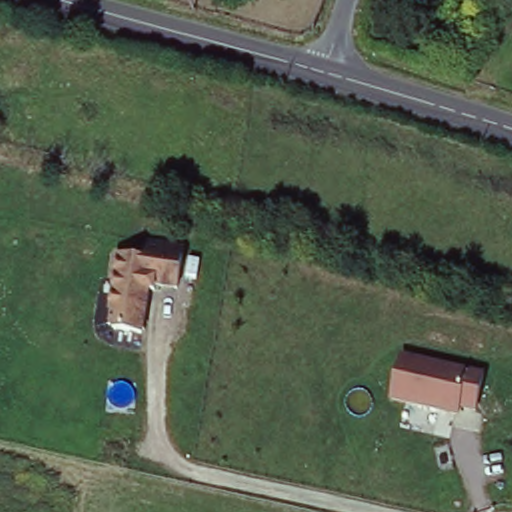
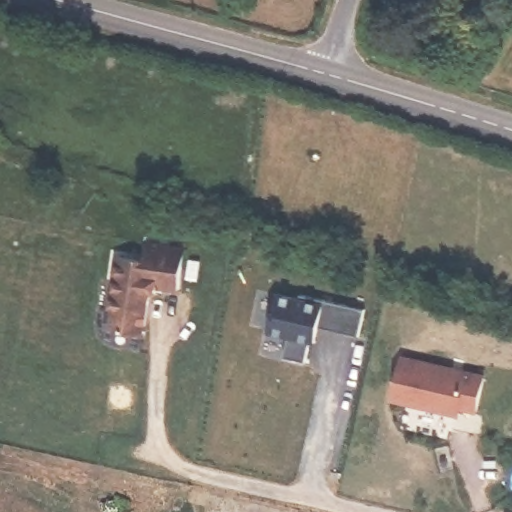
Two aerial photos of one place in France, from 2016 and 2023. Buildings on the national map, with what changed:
unchanged [(185,248),(176,292),(156,290),(155,296),(148,295),(139,338),(106,333),(110,313),(107,313),(113,278),(110,278),(114,255),(140,260),(146,242),(185,248)]
new [(279,295),(301,301),(302,296),(366,312),(360,338),(320,328),(314,332),(311,342),(306,363),(284,358),(290,337),(270,332),(279,295)]
unchanged [(484,375),(474,412),(460,410),(458,416),(387,401),(400,355),(484,375)]

